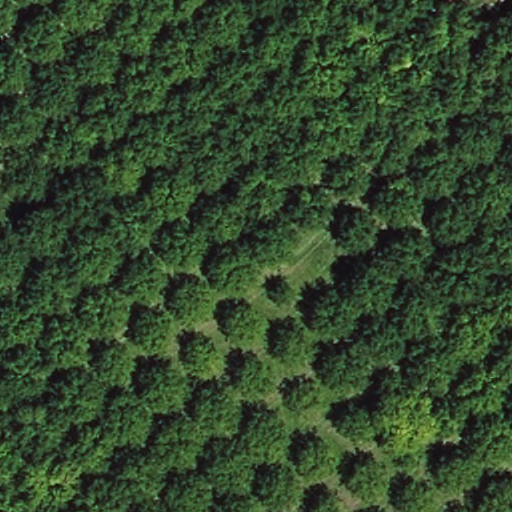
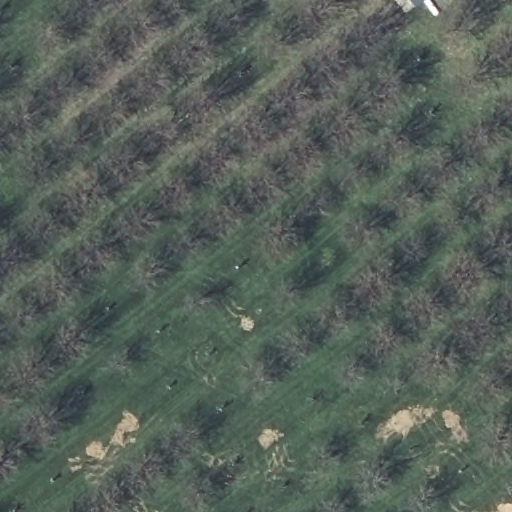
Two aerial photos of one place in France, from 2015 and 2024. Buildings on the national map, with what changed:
unchanged [(507,0),(510,0),(509,2),(507,0)]

